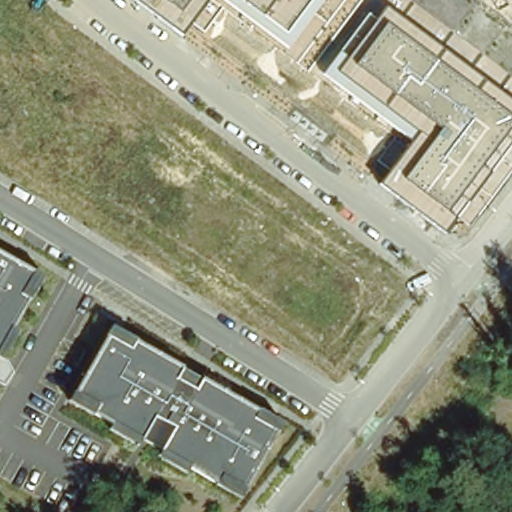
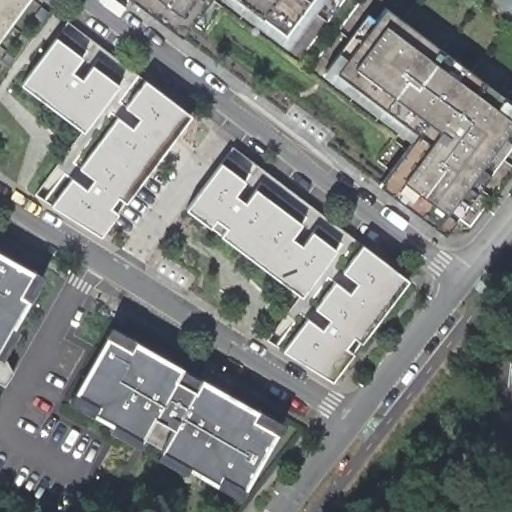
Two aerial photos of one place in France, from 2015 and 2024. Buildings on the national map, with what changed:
new [(0,0),(28,0),(0,38),(0,0)]
unchanged [(181,37),(132,0),(209,0),(181,37)]
unchanged [(287,47),(220,0),(323,0),(287,47)]
unchanged [(512,103),(512,142),(444,233),(379,185),(411,140),(323,75),(368,13),(378,20),(387,10),(512,103)]
new [(58,165),(84,130),(121,84),(93,64),(82,78),(72,70),(83,56),(57,36),(70,21),(146,79),(127,105),(142,116),(133,127),(118,115),(80,165),(95,177),(86,188),(72,176),(58,165)]
new [(84,130),(22,84),(57,36),(83,56),(72,70),(82,78),(93,64),(121,84),(84,130)]
new [(101,234),(51,203),(72,176),(86,188),(95,177),(80,165),(118,115),(133,127),(142,116),(127,105),(146,79),(192,114),(127,202),(119,212),(101,234)]
new [(287,313),(302,294),(336,248),(313,230),(302,244),(292,236),(303,223),(257,188),(247,201),(236,193),(246,179),(222,162),(235,146),(363,243),(344,268),(358,280),(350,290),(335,280),(316,306),(331,317),(322,328),(307,317),(302,324),(287,313)]
new [(302,294),(222,234),(228,225),(218,217),(211,225),(187,207),(222,162),(246,179),(236,193),(247,201),(257,188),(303,223),(292,236),(302,244),(313,230),(336,248),(302,294)]
new [(333,379),(283,349),(302,324),(307,317),(322,328),(331,317),(316,306),(335,280),(350,290),(358,280),(344,268),(363,243),(408,278),(362,340),(353,352),(333,379)]
unchanged [(0,359),(0,249),(50,276),(0,359)]
unchanged [(292,423),(244,498),(74,399),(116,323),(292,423)]

